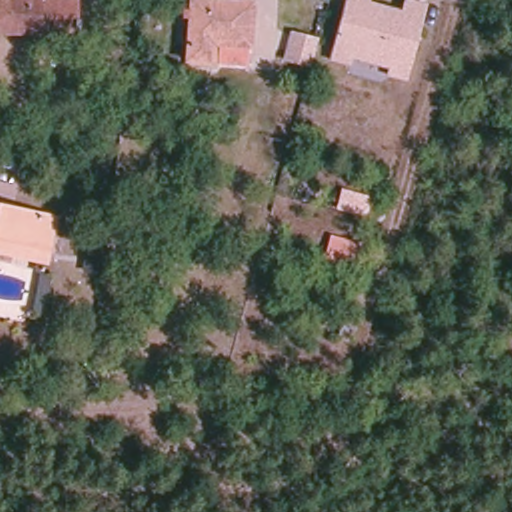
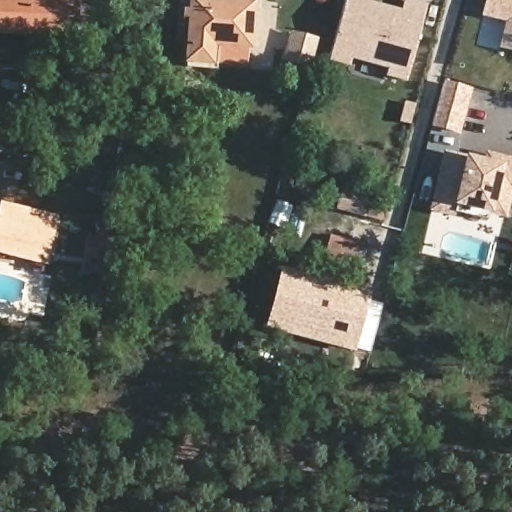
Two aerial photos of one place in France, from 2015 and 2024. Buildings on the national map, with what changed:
unchanged [(0,23),(0,0),(78,0),(76,27),(0,23)]
unchanged [(205,65),(184,62),(189,0),(229,0),(249,1),(246,42),(245,60),(205,60),(205,65)]
unchanged [(323,66),(344,0),(365,0),(368,1),(364,13),(396,22),(399,10),(422,17),(414,44),(399,90),(379,84),(382,76),(346,65),(343,72),(323,66)]
new [(479,18),(484,0),(512,0),(512,52),(498,50),(504,23),(479,18)]
new [(287,34),(314,42),(305,70),(279,61),(287,34)]
new [(459,135),(432,127),(443,81),(473,89),(459,135)]
new [(466,156),(480,160),(483,151),(512,158),(512,194),(506,220),(491,216),(454,208),(453,218),(428,211),(443,152),(466,156)]
unchanged [(44,261),(38,267),(9,262),(5,255),(0,254),(0,208),(50,217),(44,261)]
unchanged [(361,246),(355,266),(324,257),(330,237),(361,246)]
new [(264,330),(280,270),(371,294),(355,353),(264,330)]

